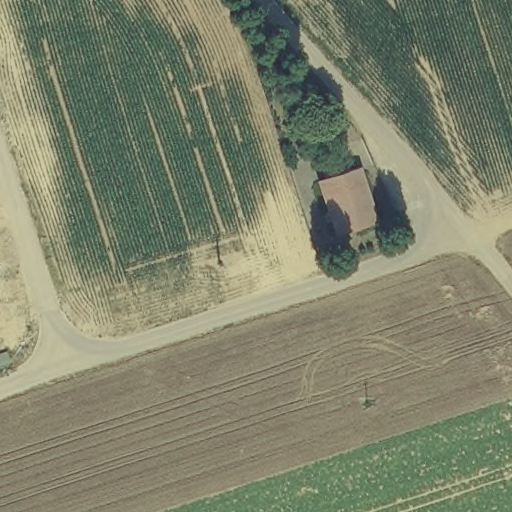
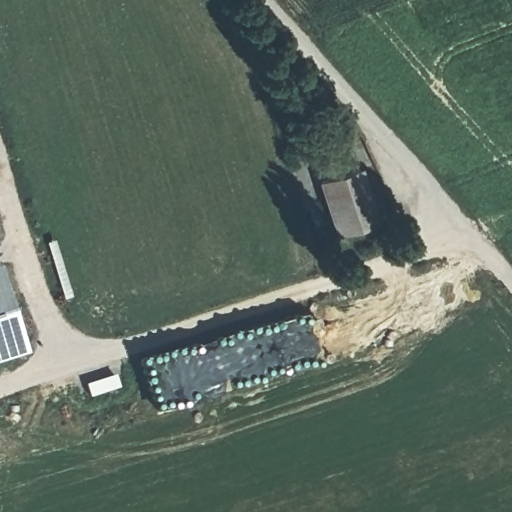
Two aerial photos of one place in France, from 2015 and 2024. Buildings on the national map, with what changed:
unchanged [(358,168),(376,220),(336,232),(319,179),(358,168)]
new [(0,351),(0,266),(25,342),(0,351)]

